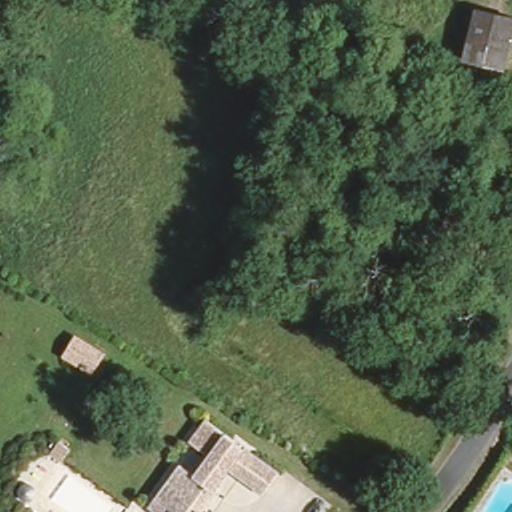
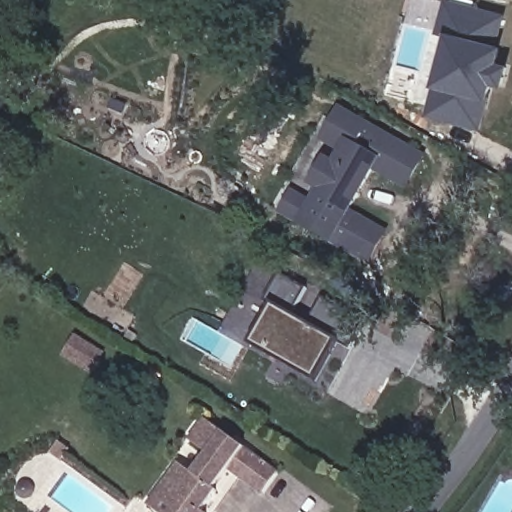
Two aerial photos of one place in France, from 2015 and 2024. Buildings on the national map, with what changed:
new [(489,85),(480,128),(420,116),(439,34),(445,0),(503,14),(497,59),(507,61),(503,87),(489,85)]
demolished [(481,0),(485,0),(512,7),(512,26),(502,63),(468,54),(481,0)]
new [(406,187),(373,169),(347,213),(385,233),(369,265),(332,241),(304,224),(322,191),(314,185),(328,161),(336,166),(344,152),(325,140),(342,111),(423,155),(406,187)]
new [(298,310),(347,337),(320,389),(243,346),(271,296),(282,273),(307,288),(298,310)]
new [(90,369),(86,367),(64,355),(74,338),(95,350),(100,352),(90,369)]
unchanged [(217,492),(207,504),(214,509),(211,512),(165,512),(150,501),(180,461),(194,472),(210,448),(189,433),(205,411),(281,465),(264,487),(230,462),(211,487),(217,492)]

